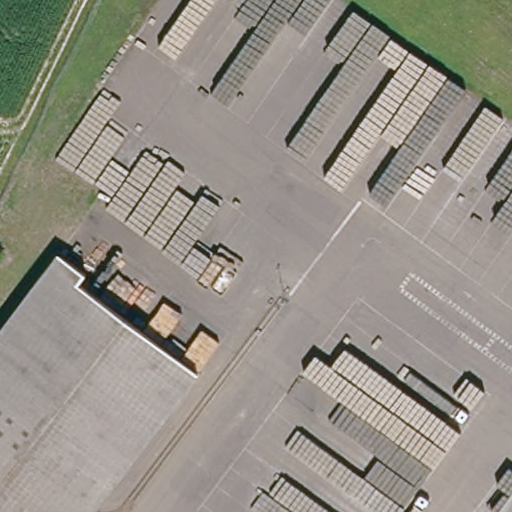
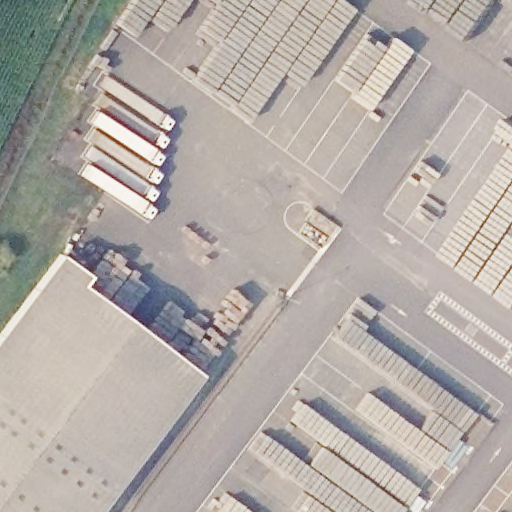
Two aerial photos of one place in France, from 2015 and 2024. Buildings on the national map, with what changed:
unchanged [(72,266),(65,276),(200,373),(99,512),(0,512),(0,334),(57,255),(72,266)]

